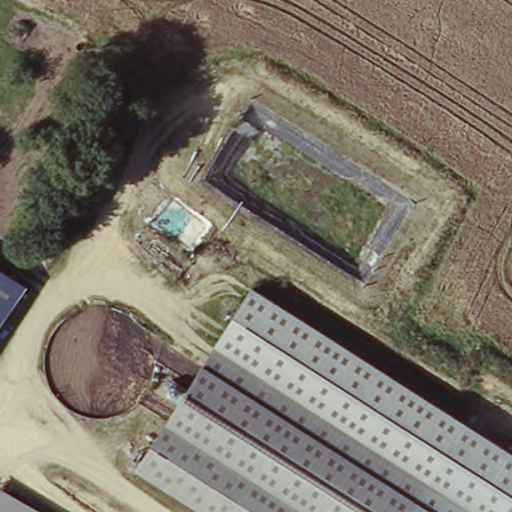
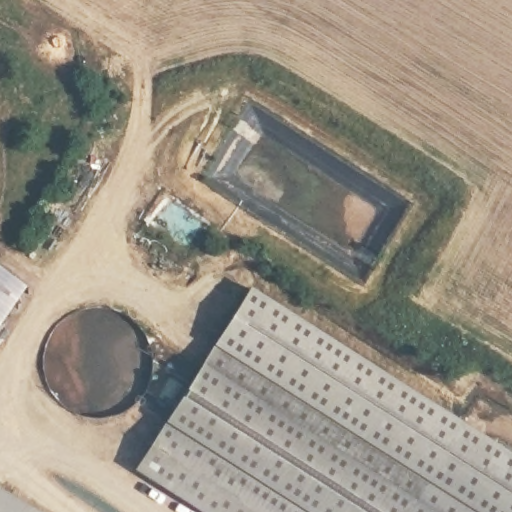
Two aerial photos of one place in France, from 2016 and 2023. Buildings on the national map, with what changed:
unchanged [(24,285),(0,320),(0,269),(24,285)]
unchanged [(423,485),(211,350),(250,286),(512,453),(512,512),(406,512),(423,485)]
unchanged [(211,350),(423,485),(406,512),(191,512),(132,475),(211,350)]
unchanged [(36,512),(0,512),(0,491),(36,512)]

